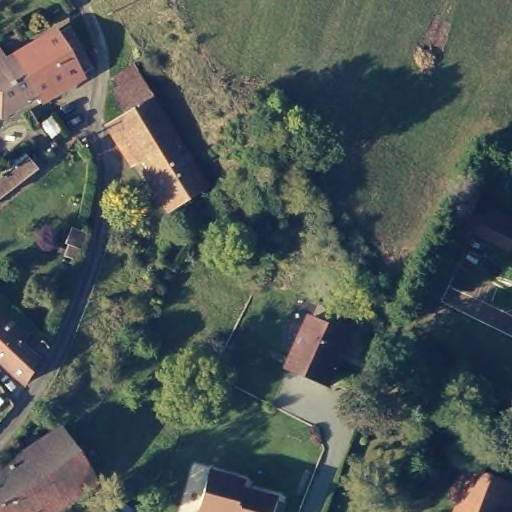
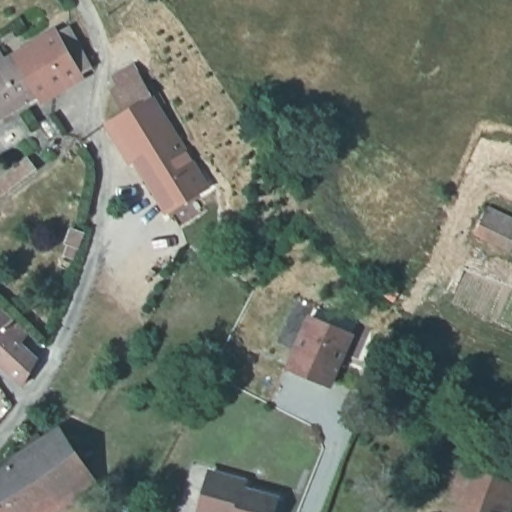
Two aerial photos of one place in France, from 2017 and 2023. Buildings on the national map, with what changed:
unchanged [(84,72),(85,76),(71,84),(67,80),(40,95),(3,117),(0,111),(0,44),(13,62),(15,60),(14,57),(63,30),(76,56),(88,50),(95,65),(84,72)]
unchanged [(143,82),(151,77),(164,98),(156,103),(208,189),(169,213),(113,122),(108,125),(108,123),(108,122),(126,111),(113,90),(118,86),(111,75),(131,62),(143,82)]
unchanged [(26,159),(36,171),(0,198),(0,179),(26,159)]
unchanged [(512,245),(511,247),(478,231),(489,200),(512,211),(512,245)]
unchanged [(66,244),(63,242),(70,225),(86,230),(73,261),(63,256),(66,244)]
unchanged [(0,365),(0,313),(28,337),(18,348),(38,365),(24,388),(0,365)]
unchanged [(349,331),(326,382),(286,365),(308,315),(349,331)]
unchanged [(10,463),(60,430),(90,474),(73,486),(37,512),(0,512),(0,470),(10,463)]
unchanged [(473,471),(468,467),(468,464),(512,477),(512,501),(508,512),(458,512),(473,471)]
unchanged [(241,487),(276,497),(271,512),(195,512),(206,473),(243,483),(241,487)]
unchanged [(123,512),(102,512),(101,511),(108,500),(124,510),(123,512)]
unchanged [(93,509),(98,512),(91,512),(93,509)]

